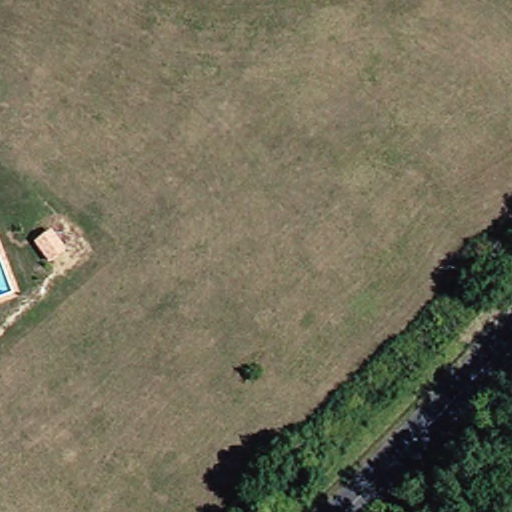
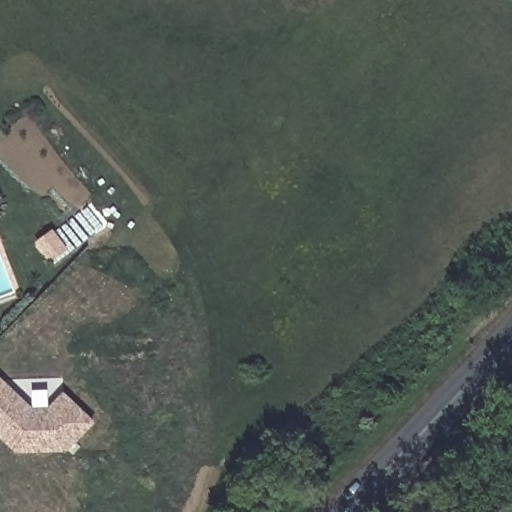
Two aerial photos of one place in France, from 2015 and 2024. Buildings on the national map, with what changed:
unchanged [(32,231),(48,219),(60,236),(44,247),(32,231)]
new [(20,452),(0,436),(0,383),(34,410),(49,407),(62,390),(95,416),(71,446),(32,450),(21,453),(20,452)]

